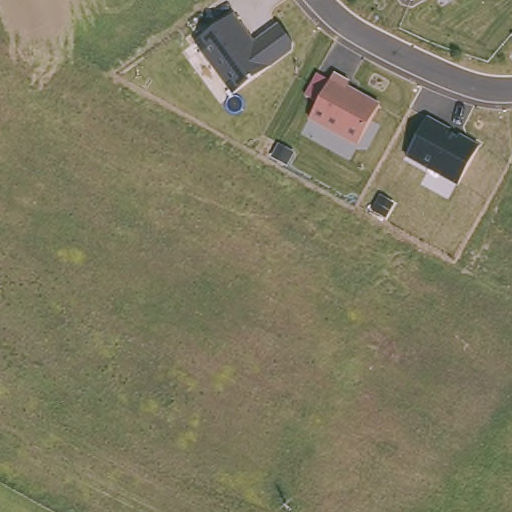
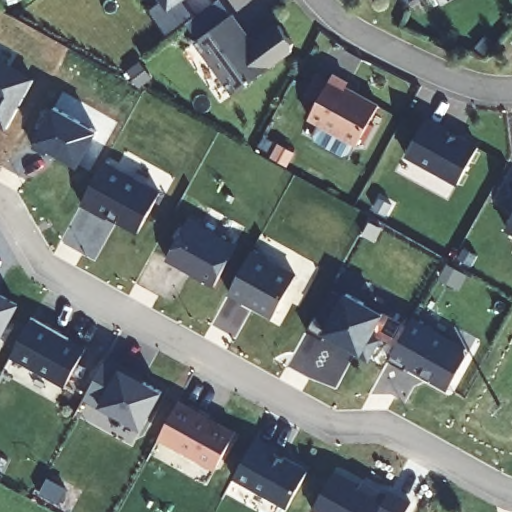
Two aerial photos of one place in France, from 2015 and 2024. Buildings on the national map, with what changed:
new [(168,34),(150,8),(164,0),(170,8),(182,0),(187,0),(196,13),(168,34)]
new [(170,8),(164,0),(182,0),(170,8)]
unchanged [(405,1),(404,0),(408,0),(405,1)]
unchanged [(236,14),(255,40),(280,23),(297,48),(233,95),(195,42),(236,14)]
new [(0,125),(0,58),(35,76),(7,128),(0,125)]
unchanged [(330,79),(335,72),(351,80),(348,85),(381,103),(360,145),(307,119),(316,103),(305,96),(317,74),(330,79)]
new [(80,167),(35,142),(53,107),(100,130),(80,167)]
unchanged [(482,145),(458,186),(405,155),(426,116),(482,145)]
new [(353,150),(346,161),(340,163),(313,149),(311,142),(317,131),(353,150)]
new [(160,190),(138,232),(108,216),(107,218),(82,204),(106,160),(160,190)]
new [(512,222),(512,238),(505,234),(512,222)]
new [(235,251),(214,290),(166,264),(187,225),(235,251)]
new [(273,323),(254,312),(255,310),(245,304),(244,307),(228,298),(251,256),(296,281),(273,323)]
new [(346,291),(386,313),(375,331),(382,335),(370,360),(362,356),(325,337),(310,328),(333,287),(346,291)]
new [(0,343),(0,290),(23,302),(0,343)]
new [(11,357),(31,319),(85,348),(65,387),(11,357)]
new [(467,360),(449,393),(407,371),(405,374),(388,365),(411,324),(465,353),(467,360)]
new [(159,393),(136,434),(87,408),(110,367),(159,393)]
new [(179,401),(235,431),(215,468),(158,439),(179,401)]
new [(256,439),(274,449),(272,453),(306,470),(285,507),(235,479),(256,439)]
new [(368,490),(387,501),(389,496),(412,508),(410,512),(315,512),(335,476),(366,493),(368,490)]

